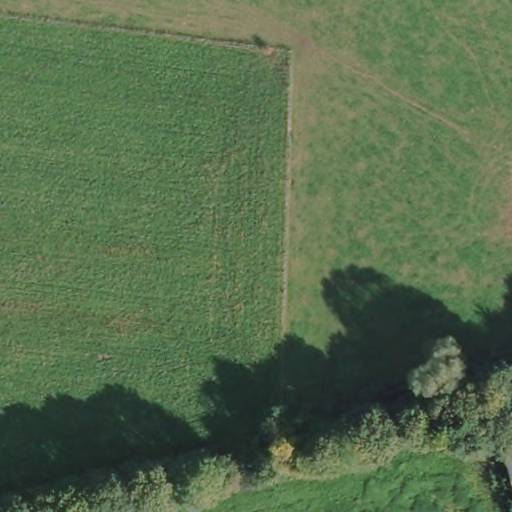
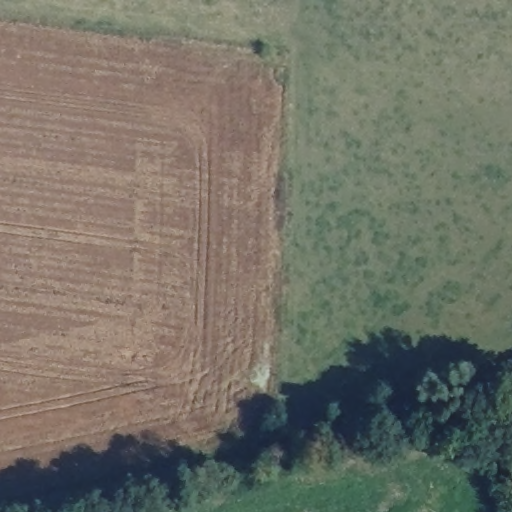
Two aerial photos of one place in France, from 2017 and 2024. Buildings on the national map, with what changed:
unchanged [(512,456),(512,470),(509,457),(512,456)]

